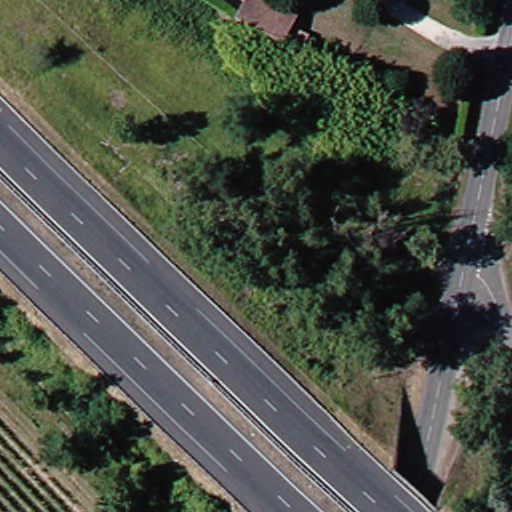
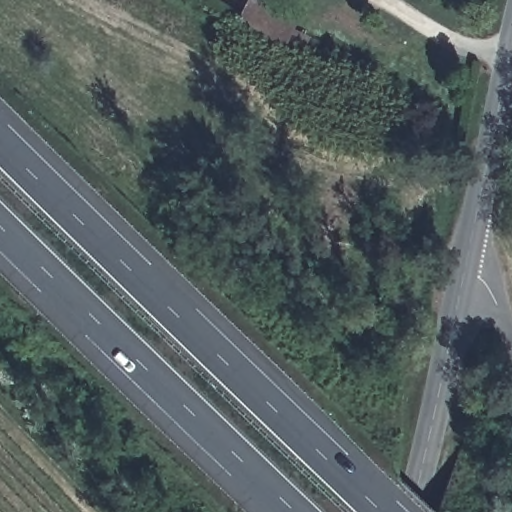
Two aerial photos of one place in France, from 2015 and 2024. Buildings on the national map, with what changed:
unchanged [(245,0),(250,0),(295,22),(289,34),(304,41),(298,53),(234,21),(245,0)]

